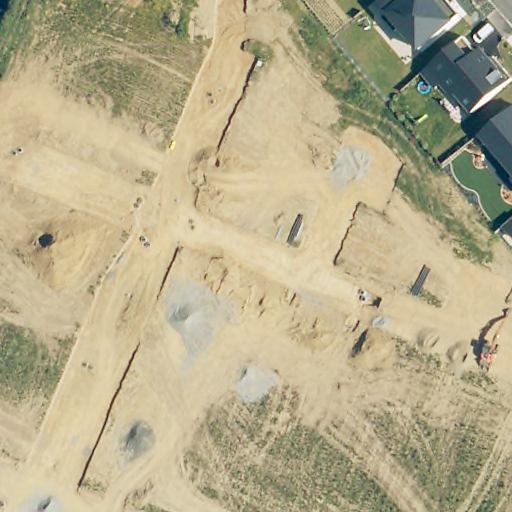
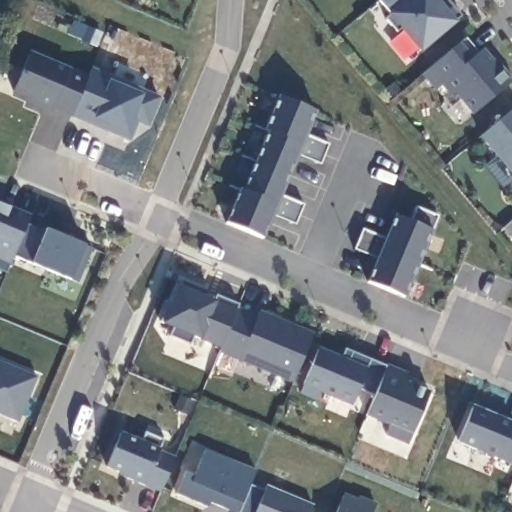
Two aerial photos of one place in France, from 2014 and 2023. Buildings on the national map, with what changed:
unchanged [(377,2),(380,0),(438,0),(447,0),(460,15),(420,50),(377,2)]
unchanged [(441,85),(437,88),(425,75),(464,39),(475,52),(481,47),(512,81),(473,114),(441,85)]
new [(74,116),(54,109),(53,112),(24,100),(26,95),(11,90),(27,50),(88,76),(74,116)]
new [(242,186),(245,186),(267,132),(264,131),(280,95),(318,110),(307,136),(329,144),(321,165),(300,157),(282,196),(304,204),(296,223),(275,215),(265,239),(227,222),(242,186)]
unchanged [(512,110),(512,175),(479,136),(512,110)]
unchanged [(1,196),(0,198),(0,196),(1,196)]
unchanged [(0,260),(0,201),(31,215),(10,263),(0,260)]
new [(437,215),(433,230),(407,296),(368,282),(377,258),(357,250),(364,231),(386,240),(397,214),(413,220),(417,207),(437,215)]
new [(81,281),(73,279),(32,261),(18,257),(31,225),(46,230),(83,244),(92,248),(81,281)]
new [(222,347),(194,336),(189,345),(171,337),(177,330),(161,324),(176,285),(182,287),(183,280),(241,305),(238,309),(222,347)]
new [(295,383),(219,352),(222,347),(238,309),(257,316),(260,310),(315,332),(295,383)]
new [(320,346),(344,356),(348,348),(385,364),(372,392),(362,387),(353,406),(303,384),(320,346)]
new [(18,422),(0,415),(0,360),(37,376),(18,422)]
new [(406,382),(428,392),(407,445),(382,435),(388,425),(362,415),(372,392),(385,364),(407,374),(406,382)]
new [(512,463),(459,443),(474,405),(512,420),(512,463)]
new [(164,491),(145,483),(105,466),(120,431),(141,440),(145,430),(164,439),(159,451),(177,457),(164,491)]
new [(207,506),(175,493),(185,470),(195,474),(206,449),(256,470),(251,485),(240,512),(239,512),(209,501),(207,506)]
new [(240,512),(251,485),(265,491),(269,486),(313,504),(310,512),(240,512)]
new [(337,512),(344,493),(357,498),(359,494),(374,500),(371,512),(337,512)]

